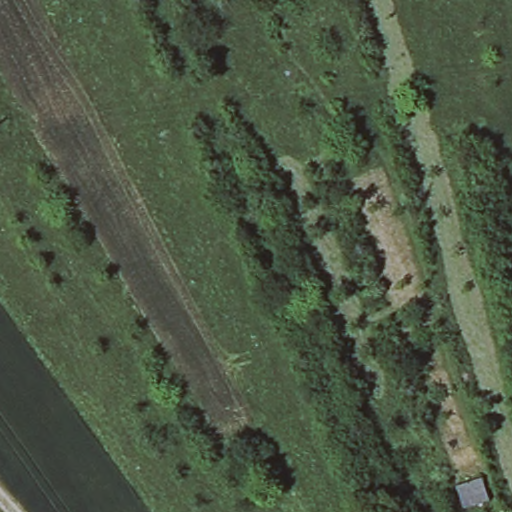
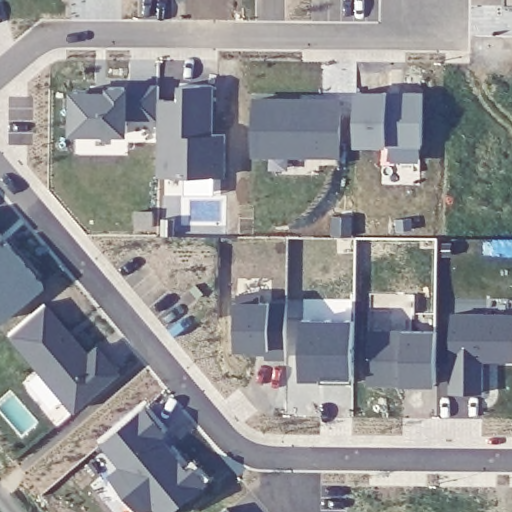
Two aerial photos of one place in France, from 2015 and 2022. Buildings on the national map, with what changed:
new [(507,0),(512,0),(512,4),(507,4),(507,0)]
new [(75,91),(111,91),(111,88),(130,88),(160,87),(160,100),(183,101),(183,86),(213,86),(214,135),(226,134),(226,174),(161,173),(160,117),(129,118),(128,132),(75,131),(75,91)]
new [(358,92),(402,93),(423,93),(423,143),(402,143),(358,143),(358,92)]
new [(337,102),(340,160),(250,160),(251,101),(337,102)]
new [(352,218),(352,237),(330,237),(331,218),(352,218)]
new [(44,282),(0,319),(0,229),(44,282)]
new [(235,294),(258,294),(258,300),(285,301),(284,354),(264,354),(264,345),(235,345),(235,294)]
new [(7,334),(47,301),(89,352),(98,344),(118,371),(72,410),(7,334)]
new [(480,390),(449,389),(449,312),(512,312),(512,357),(480,357),(480,390)]
new [(350,325),(349,382),(318,382),(318,385),(297,385),(298,325),(350,325)]
new [(370,385),(370,330),(406,329),(440,329),(440,386),(406,386),(370,385)]
new [(156,504),(146,512),(142,512),(110,473),(118,466),(100,443),(148,404),(210,480),(171,512),(163,512),(156,504)]
new [(230,509),(233,512),(226,512),(230,509)]

